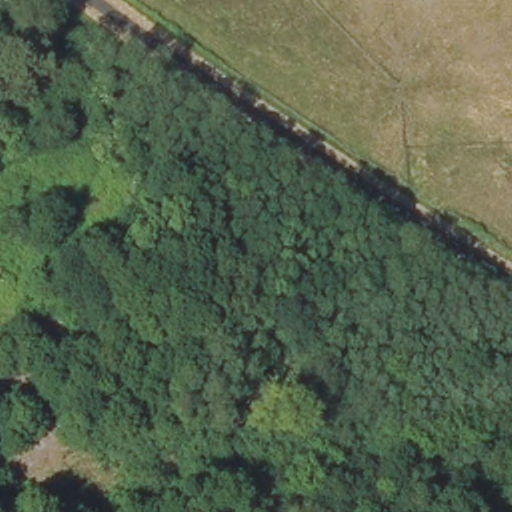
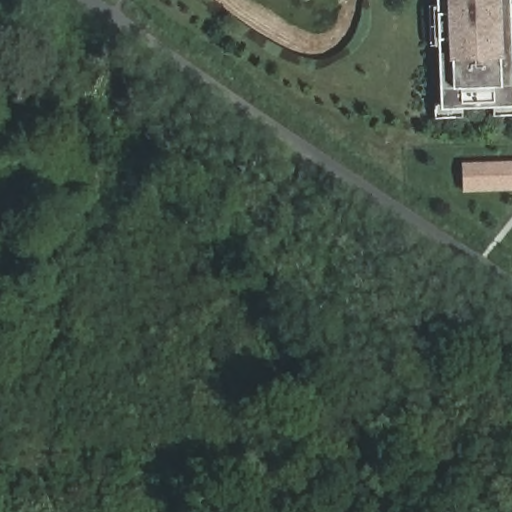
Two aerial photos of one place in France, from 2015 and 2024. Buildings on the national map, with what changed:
new [(444,107),(439,0),(512,0),(512,105),(444,107)]
new [(512,163),(512,188),(465,190),(464,166),(512,163)]

